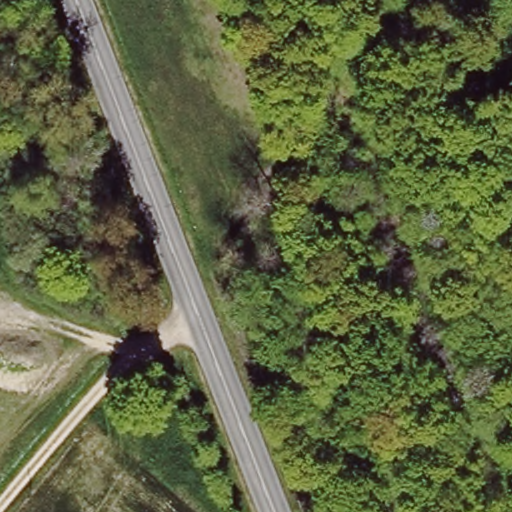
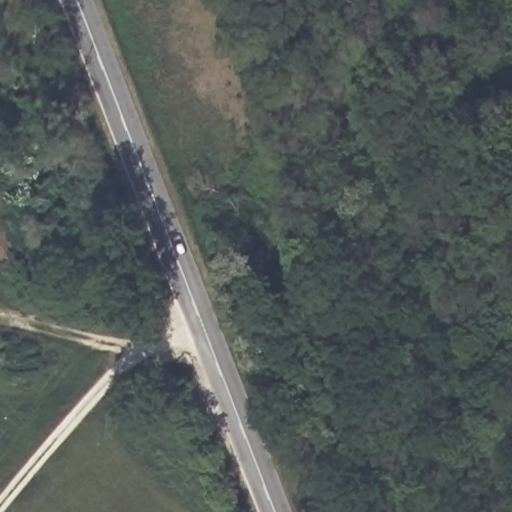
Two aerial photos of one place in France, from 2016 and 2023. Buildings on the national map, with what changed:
unchanged [(172,376),(181,391),(167,398),(160,384),(172,376)]

